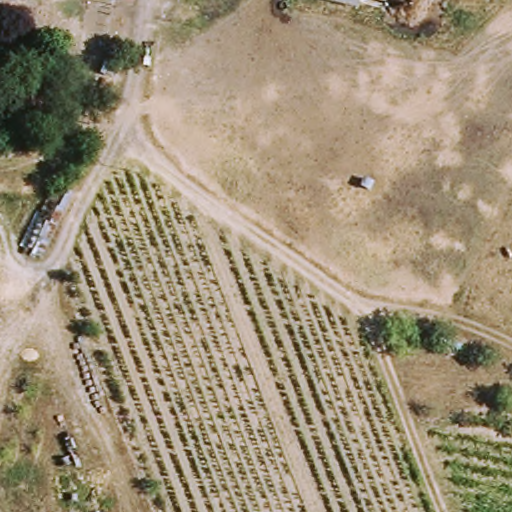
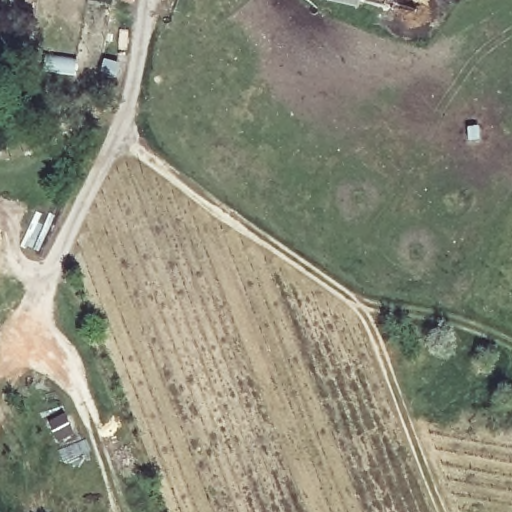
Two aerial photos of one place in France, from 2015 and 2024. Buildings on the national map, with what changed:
unchanged [(344,0),(363,0),(363,3),(344,0)]

